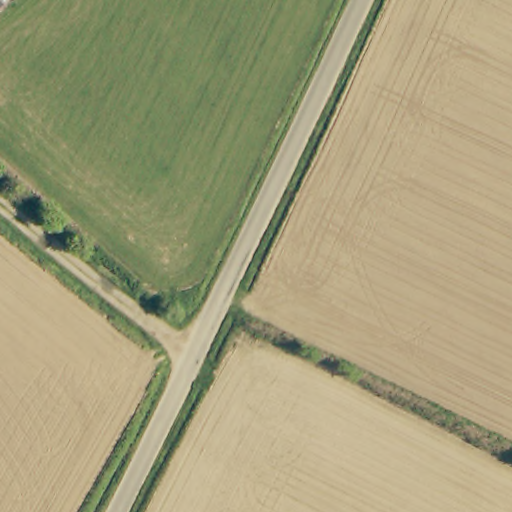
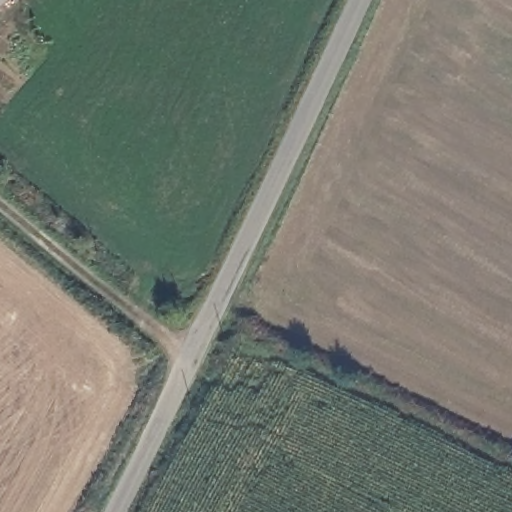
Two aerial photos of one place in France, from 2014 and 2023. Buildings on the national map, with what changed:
unchanged [(0,0),(5,0),(0,6),(0,0)]

